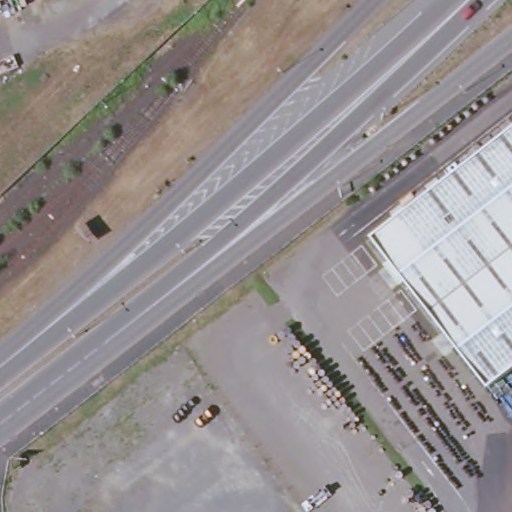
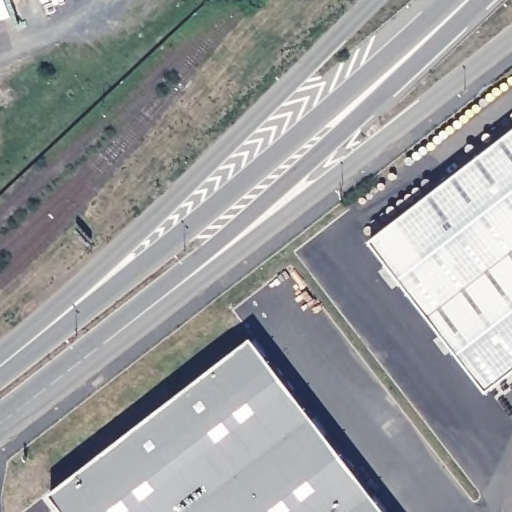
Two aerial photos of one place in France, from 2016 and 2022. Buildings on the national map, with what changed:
unchanged [(477,157),(512,130),(512,373),(491,389),(406,282),(398,288),(395,284),(399,280),(393,273),(390,276),(385,271),(392,265),(373,240),(471,162),(472,157),(477,157)]
new [(392,512),(67,512),(50,490),(252,333),(392,512)]

